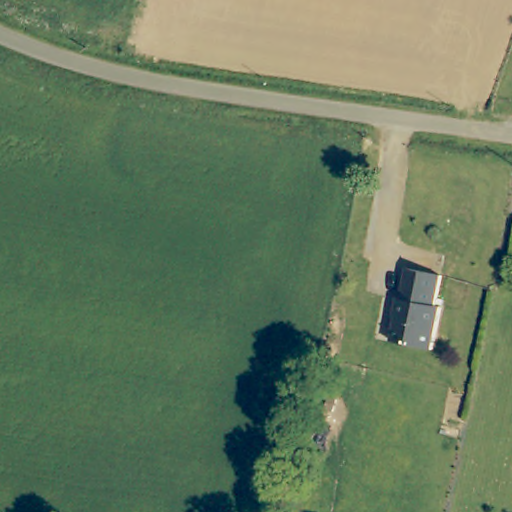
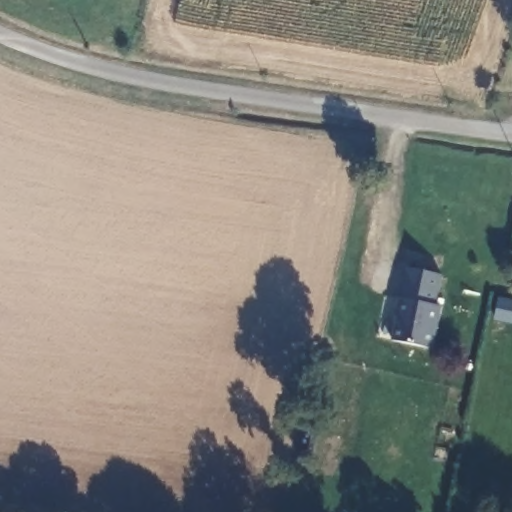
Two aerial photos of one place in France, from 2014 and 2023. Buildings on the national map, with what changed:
unchanged [(442,276),(437,306),(443,307),(436,350),(395,343),(399,318),(396,318),(399,300),(402,301),(407,270),(442,276)]

